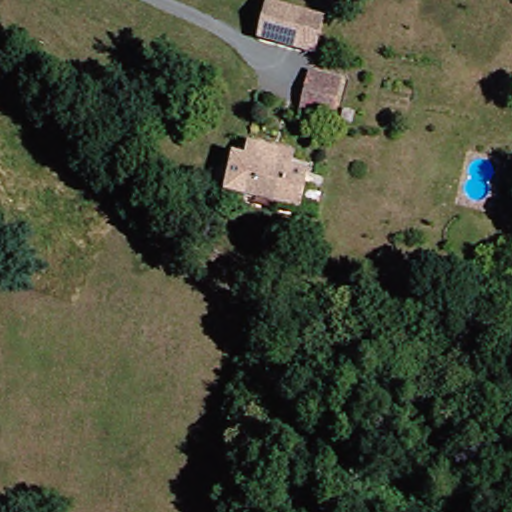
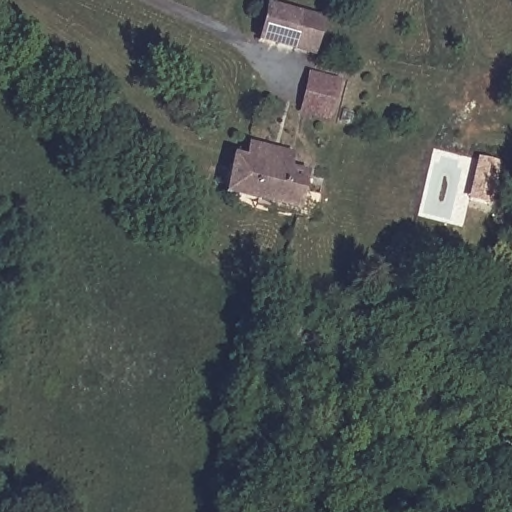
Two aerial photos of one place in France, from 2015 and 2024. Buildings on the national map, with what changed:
unchanged [(252,40),(262,5),(316,21),(307,53),(252,40)]
unchanged [(325,115),(301,109),(295,107),(302,74),(310,76),(334,82),(325,115)]
unchanged [(302,188),(320,190),(317,209),(220,200),(226,161),(239,162),(241,147),(285,152),(284,167),(304,169),(302,188)]

